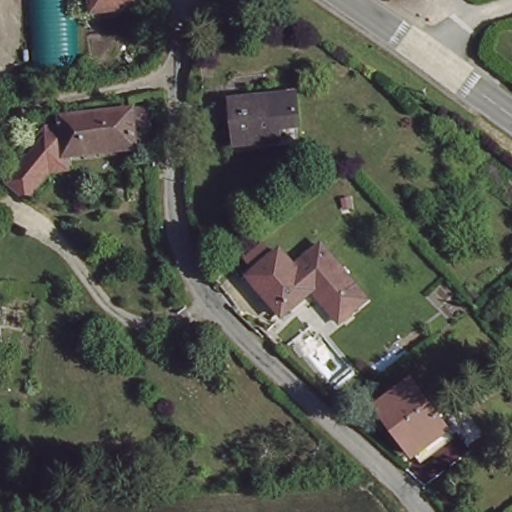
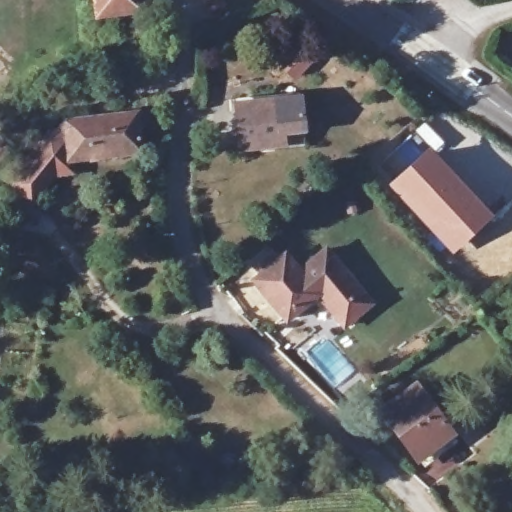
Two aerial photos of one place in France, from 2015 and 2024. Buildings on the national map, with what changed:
unchanged [(104,11),(103,0),(140,0),(140,7),(104,11)]
unchanged [(302,136),(236,144),(231,108),(296,101),(302,136)]
unchanged [(155,112),(158,130),(142,135),(142,155),(71,161),(73,172),(57,175),(53,179),(56,181),(37,204),(16,185),(34,163),(36,165),(38,162),(37,152),(44,150),(42,146),(58,142),(58,127),(155,112)]
new [(430,145),(494,215),(452,255),(387,185),(430,145)]
unchanged [(383,300),(357,323),(328,288),(299,311),(269,276),(297,252),(310,270),(338,246),(383,300)]
unchanged [(452,441),(424,460),(389,412),(415,393),(452,441)]

